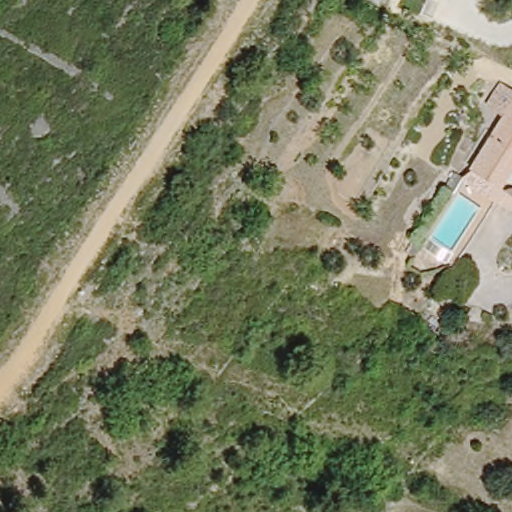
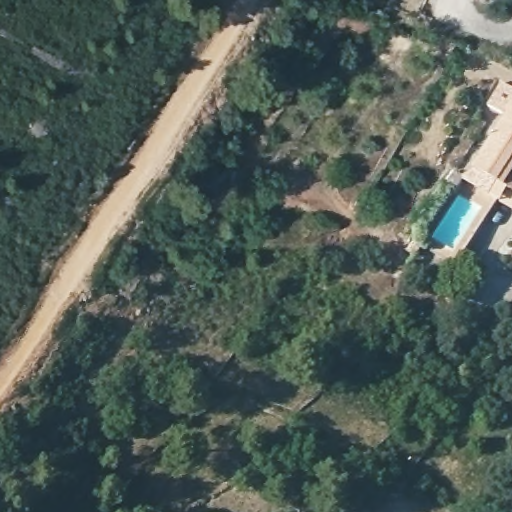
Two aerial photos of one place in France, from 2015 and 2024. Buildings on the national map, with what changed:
unchanged [(512,196),(498,189),(483,180),(460,166),(504,92),(512,97),(512,195),(512,196)]
unchanged [(403,243),(411,230),(420,235),(411,249),(403,243)]

